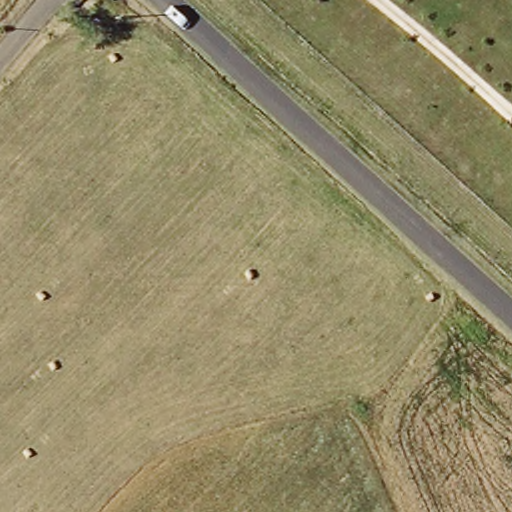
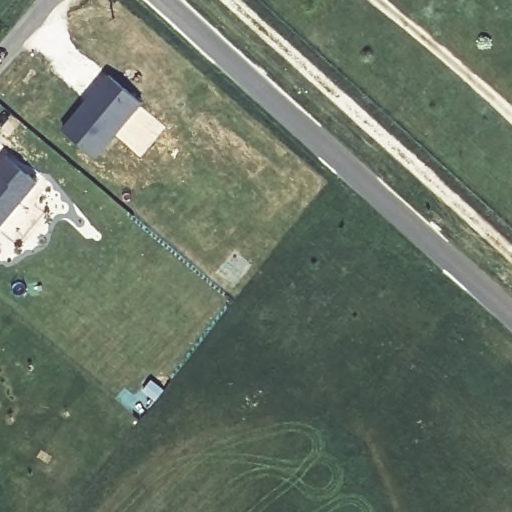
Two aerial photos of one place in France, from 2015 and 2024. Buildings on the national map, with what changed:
new [(112,74),(145,101),(100,156),(67,129),(112,74)]
new [(0,170),(0,165),(9,154),(30,171),(40,179),(3,222),(0,223),(0,172),(1,171),(0,170)]

